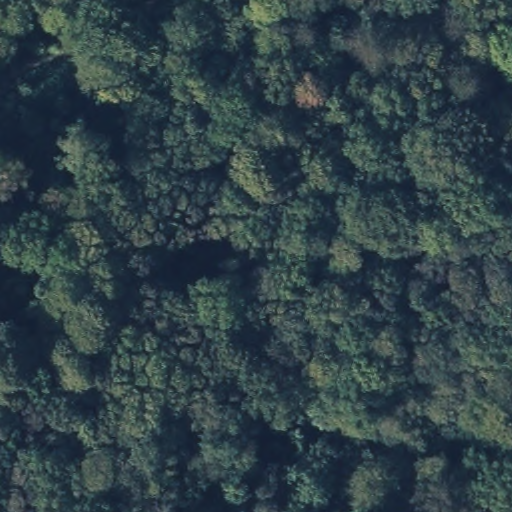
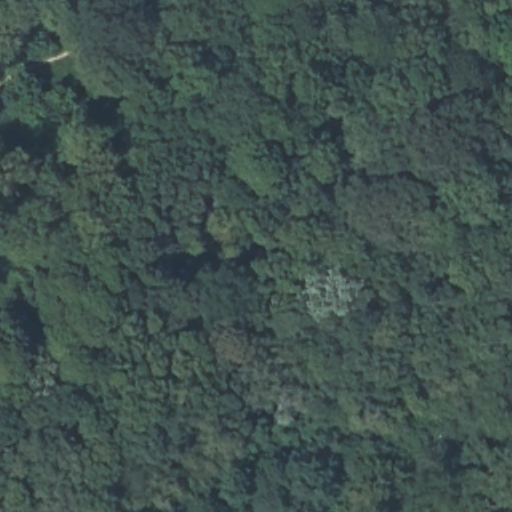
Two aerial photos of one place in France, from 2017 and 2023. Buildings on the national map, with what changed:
[]

